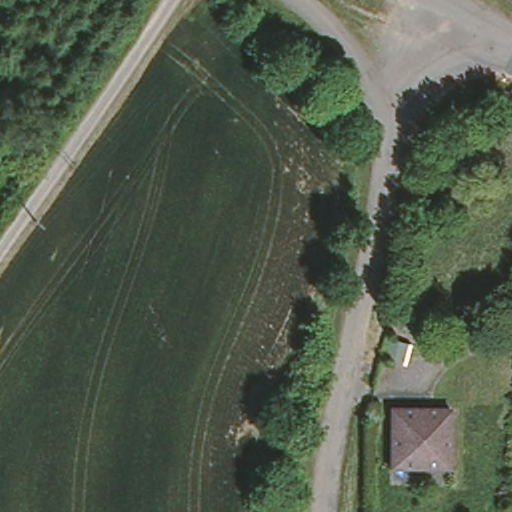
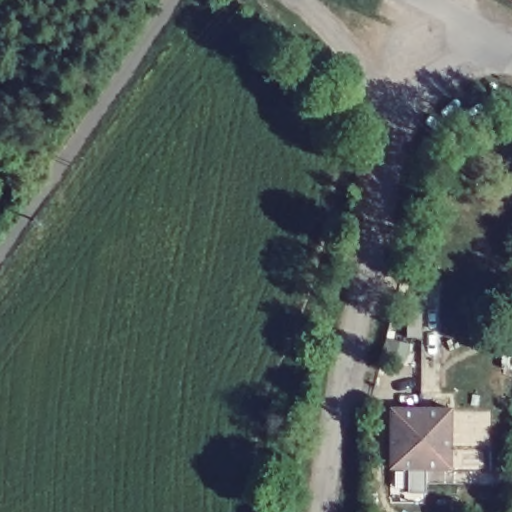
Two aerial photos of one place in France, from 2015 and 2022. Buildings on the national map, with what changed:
unchanged [(447,466),(386,465),(387,406),(405,406),(429,407),(447,407),(447,466)]

